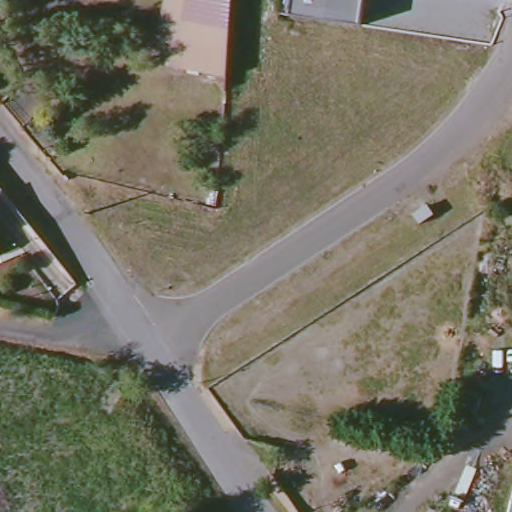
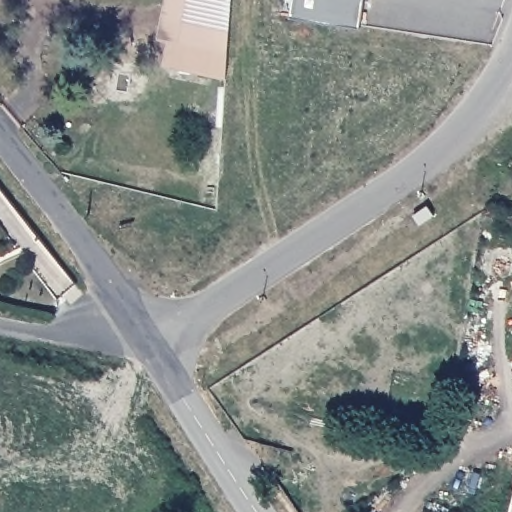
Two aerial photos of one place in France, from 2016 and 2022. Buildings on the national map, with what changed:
unchanged [(229,80),(162,67),(167,40),(160,38),(167,0),(234,0),(229,80)]
unchanged [(360,24),(292,15),(294,0),(364,0),(360,24)]
unchanged [(512,494),(512,512),(509,512),(507,511),(512,494)]
unchanged [(509,512),(507,512),(507,511),(509,512)]

